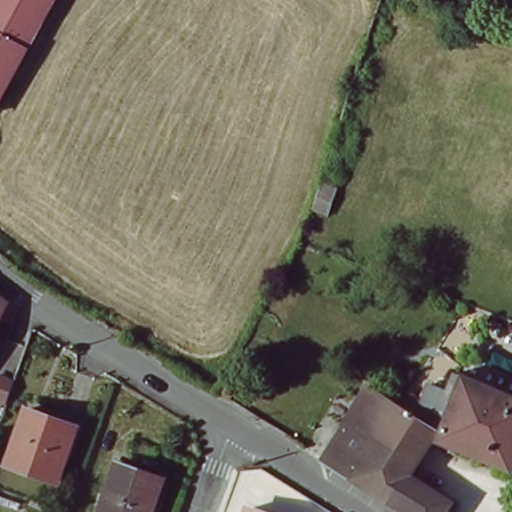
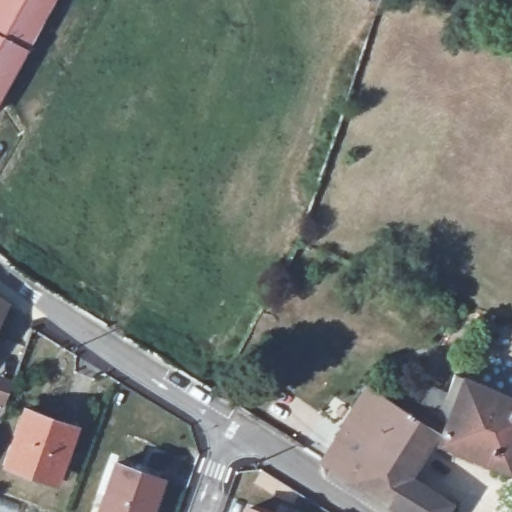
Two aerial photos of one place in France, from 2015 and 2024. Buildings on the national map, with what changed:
unchanged [(0,0),(48,0),(2,85),(0,88),(0,0)]
unchanged [(28,99),(17,122),(13,121),(25,98),(28,99)]
unchanged [(327,215),(307,208),(316,182),(335,189),(327,215)]
unchanged [(0,322),(0,297),(9,303),(0,322)]
unchanged [(213,390),(220,378),(222,373),(237,383),(228,400),(213,390)]
unchanged [(510,475),(438,445),(432,443),(410,478),(389,505),(368,492),(322,464),(344,429),(374,449),(407,395),(422,404),(428,388),(447,396),(455,377),(464,381),(512,402),(512,470),(510,475)]
unchanged [(26,408),(76,426),(55,483),(5,465),(26,408)]
unchanged [(127,438),(158,450),(154,461),(122,451),(127,438)]
unchanged [(163,478),(152,512),(98,512),(116,461),(163,478)]
unchanged [(450,507),(447,512),(399,512),(389,505),(410,478),(450,507)]
unchanged [(262,512),(246,512),(247,507),(262,512)]

